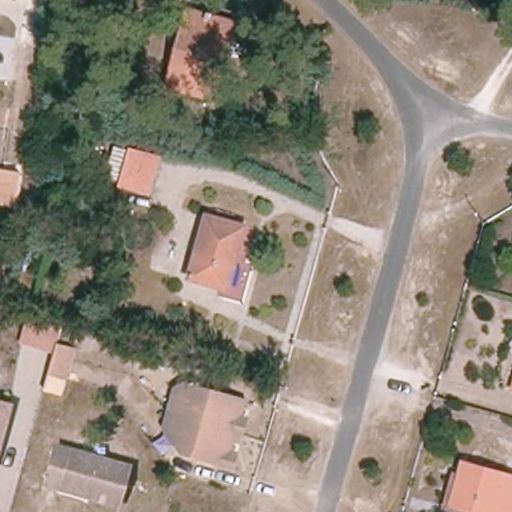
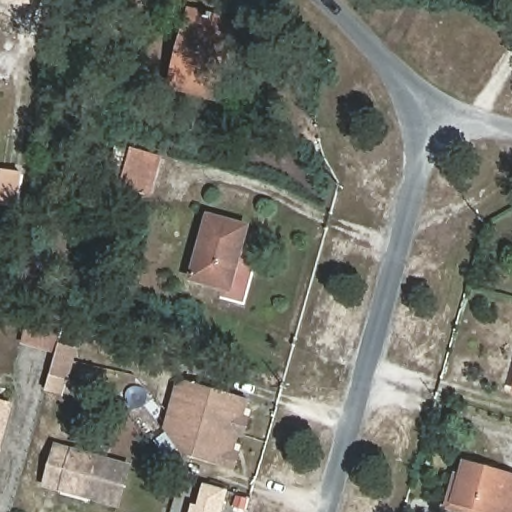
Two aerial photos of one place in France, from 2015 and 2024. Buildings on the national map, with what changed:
unchanged [(201,97),(167,88),(186,13),(230,25),(224,46),(210,100),(201,97)]
unchanged [(161,183),(151,180),(148,192),(128,187),(129,183),(114,180),(124,149),(137,153),(138,150),(167,160),(161,183)]
unchanged [(20,176),(14,207),(0,203),(0,191),(3,173),(20,176)]
unchanged [(225,288),(185,277),(203,214),(243,224),(225,288)]
unchanged [(20,346),(28,320),(60,330),(55,350),(72,354),(64,383),(47,379),(53,356),(20,346)]
unchanged [(238,422),(244,425),(240,440),(233,439),(228,458),(234,460),(230,475),(183,462),(163,432),(174,395),(186,388),(243,404),(238,422)]
unchanged [(0,430),(0,410),(5,411),(0,430)]
unchanged [(134,474),(124,510),(49,488),(59,452),(134,474)]
unchanged [(512,474),(512,512),(499,512),(457,499),(468,461),(512,474)]
new [(196,502),(201,503),(207,483),(228,490),(222,512),(193,512),(196,502)]

